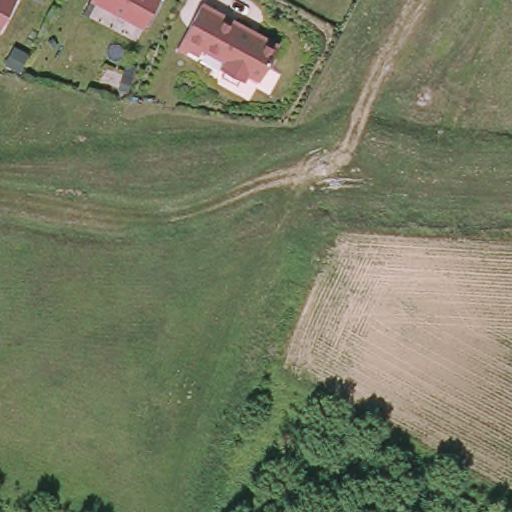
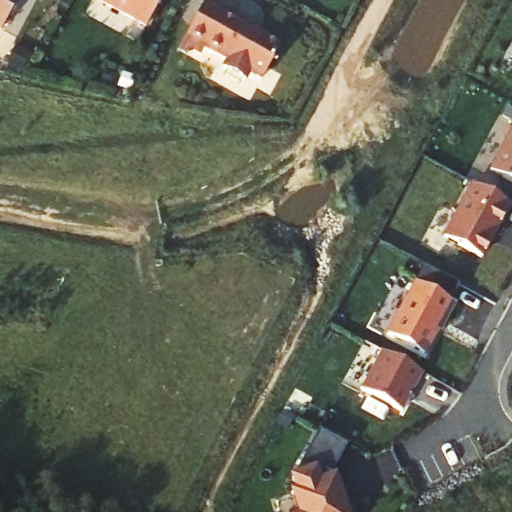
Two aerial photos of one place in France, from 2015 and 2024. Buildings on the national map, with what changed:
unchanged [(0,23),(0,0),(16,0),(3,24),(0,23)]
unchanged [(115,0),(157,0),(147,18),(115,0)]
unchanged [(263,74),(250,67),(245,75),(212,59),(217,49),(186,34),(203,0),(204,0),(281,40),(263,74)]
new [(512,126),(512,184),(487,172),(512,126)]
new [(510,206),(482,259),(442,238),(470,185),(510,206)]
new [(455,305),(440,333),(437,332),(425,355),(385,334),(413,282),(455,305)]
new [(420,374),(401,412),(361,392),(380,353),(420,374)]
new [(300,461),(315,433),(343,449),(328,477),(329,482),(337,503),(340,512),(347,509),(349,512),(294,512),(288,495),(292,494),(288,482),(300,461)]

